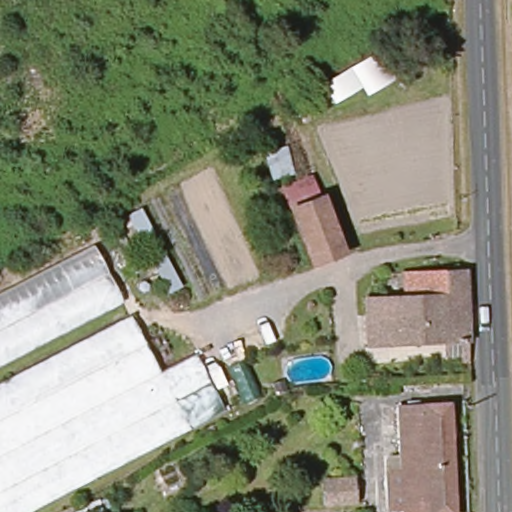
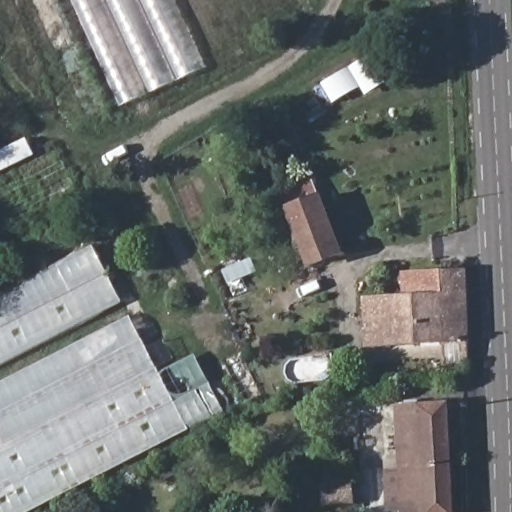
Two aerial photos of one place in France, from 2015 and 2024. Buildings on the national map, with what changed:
new [(120,105),(73,0),(174,0),(206,67),(120,105)]
new [(365,95),(360,87),(335,103),(308,118),(296,98),(322,83),(376,51),(392,79),(365,95)]
unchanged [(314,270),(294,209),(327,197),(346,259),(314,270)]
unchanged [(0,365),(0,295),(96,246),(124,300),(0,365)]
unchanged [(449,343),(373,347),(371,302),(415,299),(414,275),(469,271),(472,342),(473,364),(450,365),(449,343)]
unchanged [(192,432),(39,512),(0,512),(0,386),(134,316),(165,378),(192,432)]
unchanged [(196,356),(226,410),(192,432),(165,378),(196,356)]
unchanged [(456,400),(460,512),(411,512),(411,509),(398,510),(396,472),(409,471),(407,404),(456,400)]
unchanged [(324,480),(349,480),(348,506),(319,506),(319,480),(324,480)]

